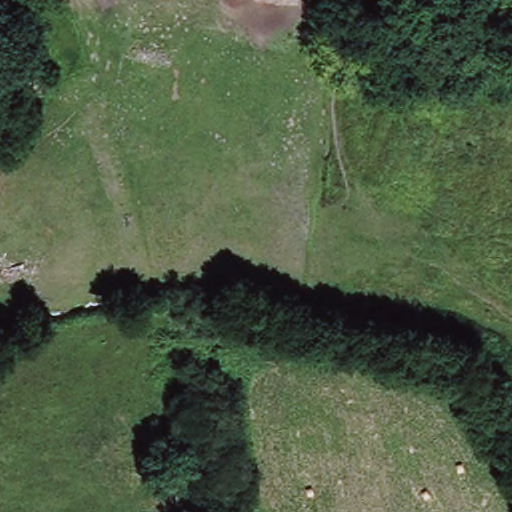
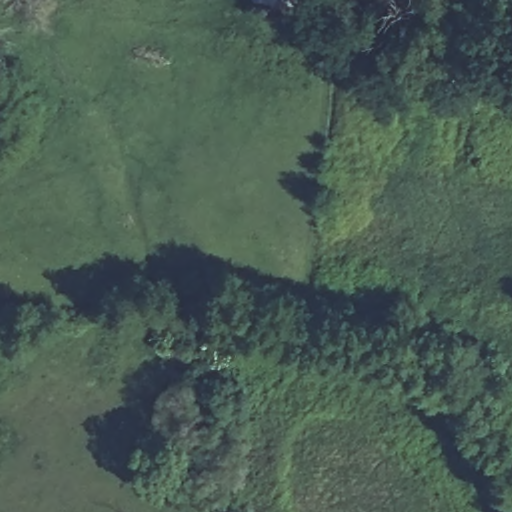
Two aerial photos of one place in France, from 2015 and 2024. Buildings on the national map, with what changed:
[]

